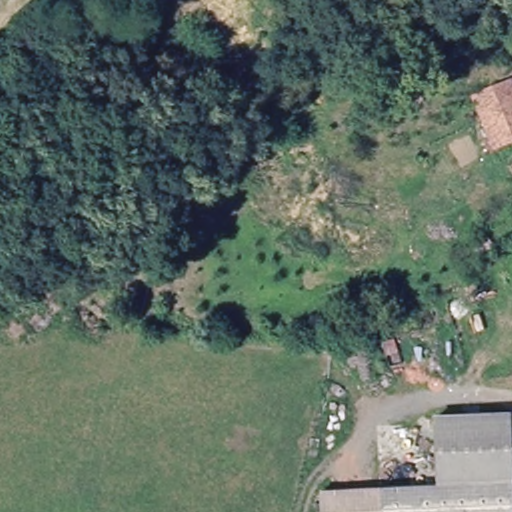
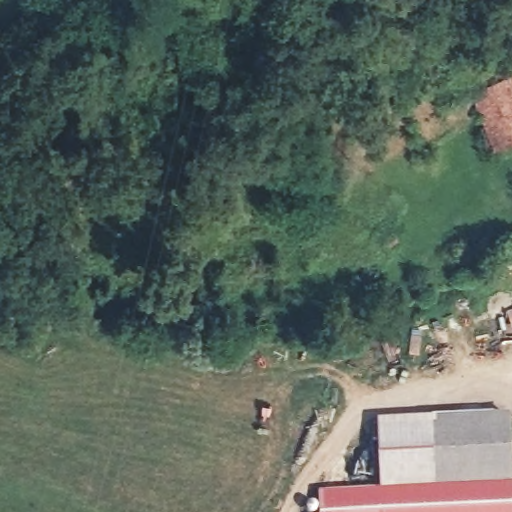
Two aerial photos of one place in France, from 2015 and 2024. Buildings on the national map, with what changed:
unchanged [(512,140),(492,148),(473,95),(508,84),(512,98),(512,140)]
unchanged [(435,419),(512,412),(512,512),(320,512),(319,490),(437,485),(435,419)]
new [(435,419),(437,485),(381,488),(380,420),(435,419)]

